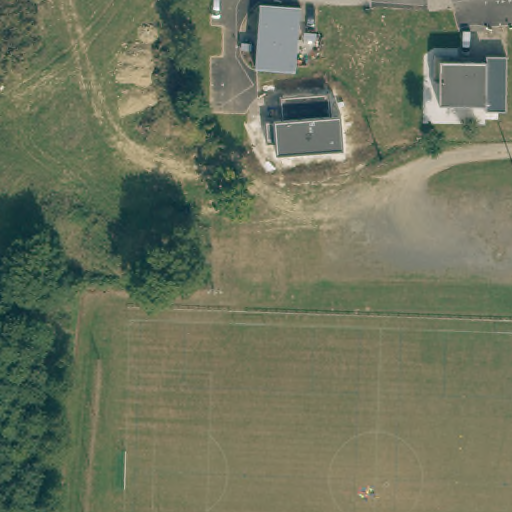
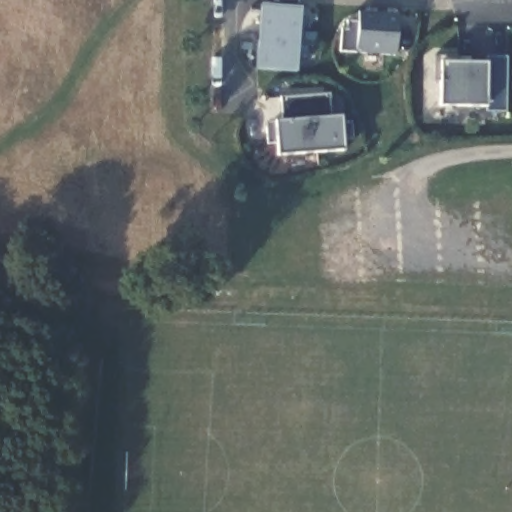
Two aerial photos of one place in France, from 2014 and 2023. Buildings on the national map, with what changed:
unchanged [(257,71),(262,5),(300,7),(296,72),(257,71)]
new [(400,14),(396,56),(340,51),(341,30),(348,30),(349,21),(358,22),(358,11),(400,14)]
unchanged [(487,111),(487,107),(441,106),(441,82),(433,82),(433,56),(455,57),(456,61),(487,61),(486,56),(507,57),(507,111),(487,111)]
unchanged [(331,116),(340,116),(345,151),(279,156),(275,121),(284,121),(282,97),(329,94),(331,116)]

